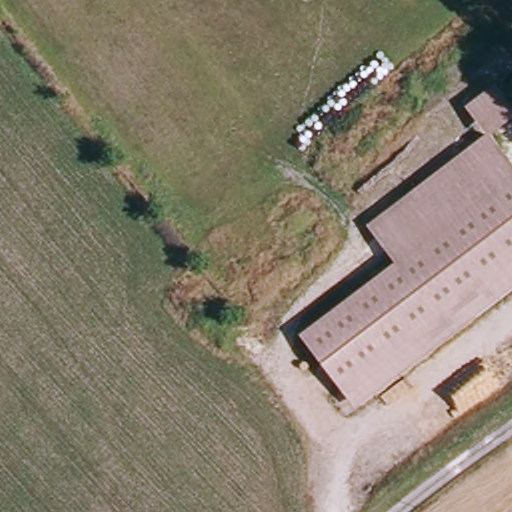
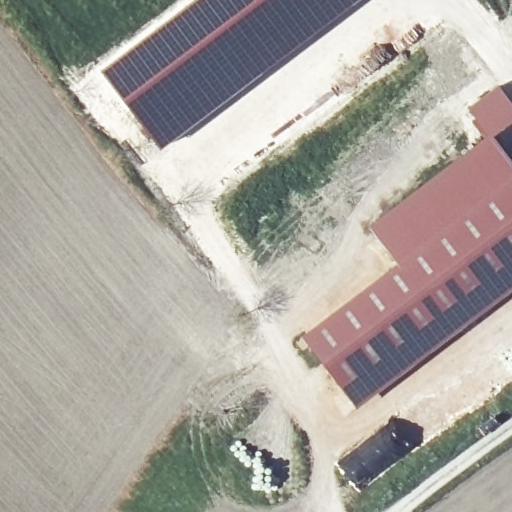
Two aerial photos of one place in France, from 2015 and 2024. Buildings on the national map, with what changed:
new [(189,0),(361,0),(322,31),(166,147),(163,142),(169,138),(163,131),(159,134),(157,131),(152,134),(133,114),(101,69),(189,0)]
unchanged [(492,91),(512,113),(512,123),(490,140),(469,112),(492,91)]
unchanged [(512,268),(344,395),(302,340),(398,268),(370,231),(490,140),(512,170),(512,268)]

